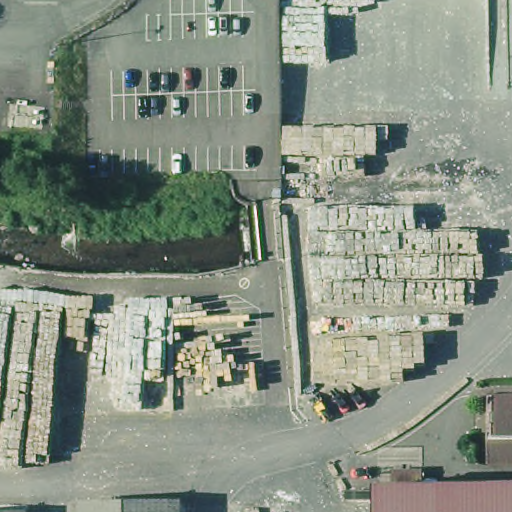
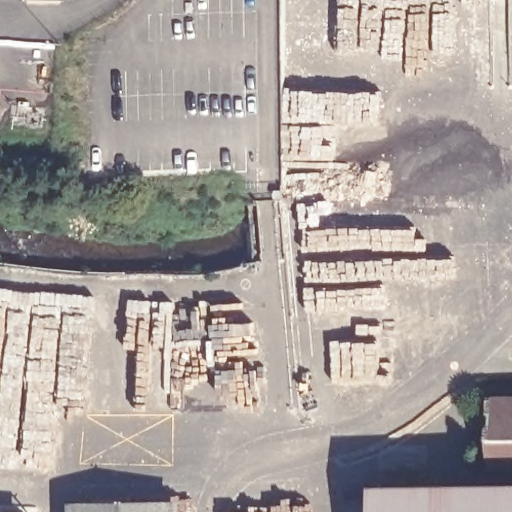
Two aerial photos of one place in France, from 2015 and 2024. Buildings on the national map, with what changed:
unchanged [(498,431),(497,394),(512,394),(512,459),(498,459),(498,431)]
unchanged [(380,486),(512,483),(512,512),(381,512),(380,486)]
unchanged [(189,512),(75,512),(75,504),(188,504),(189,512)]

